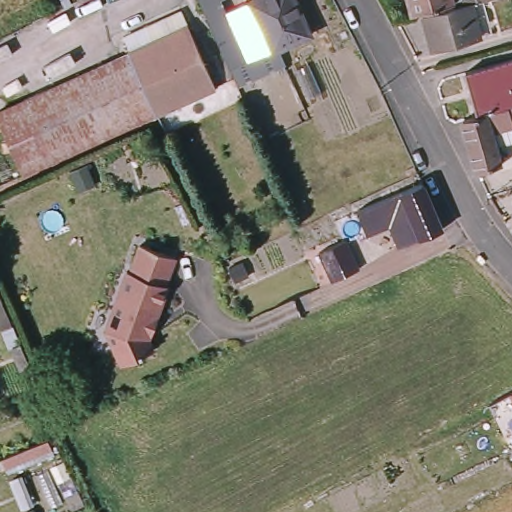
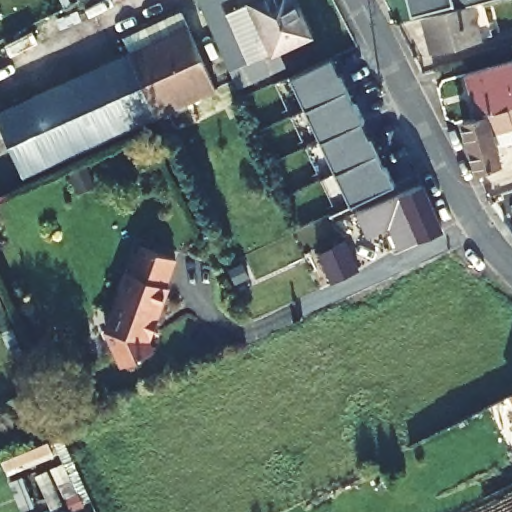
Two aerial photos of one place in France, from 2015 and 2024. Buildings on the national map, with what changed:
new [(74,4),(72,0),(81,0),(74,4)]
unchanged [(247,61),(248,63),(231,71),(203,11),(198,0),(225,0),(220,2),(226,16),(247,61)]
unchanged [(270,52),(270,51),(248,5),(247,2),(253,0),(295,0),(310,34),(274,50),(270,52)]
unchanged [(462,2),(447,6),(447,1),(404,14),(400,0),(469,0),(462,2)]
unchanged [(472,37),(422,51),(420,43),(412,16),(447,6),(462,2),(470,30),(472,37)]
unchanged [(248,5),(270,51),(247,61),(226,16),(248,5)]
unchanged [(215,88),(146,119),(56,158),(19,174),(0,128),(0,111),(188,27),(215,88)]
new [(248,63),(247,61),(270,51),(270,52),(274,50),(310,34),(313,38),(281,53),(286,67),(238,89),(231,71),(248,63)]
new [(332,56),(395,184),(352,202),(291,76),(332,56)]
unchanged [(496,170),(474,177),(459,130),(457,127),(474,122),(461,79),(508,66),(512,79),(512,132),(511,132),(487,140),(496,170)]
unchanged [(439,230),(416,240),(395,249),(386,228),(363,238),(352,214),(417,186),(439,230)]
unchanged [(337,281),(331,283),(317,254),(326,250),(345,242),(358,271),(337,281)]
unchanged [(162,287),(166,288),(165,291),(155,320),(151,318),(144,337),(152,353),(121,367),(115,354),(114,355),(104,334),(107,332),(112,317),(111,316),(110,316),(124,275),(127,276),(136,248),(172,261),(162,287)]

